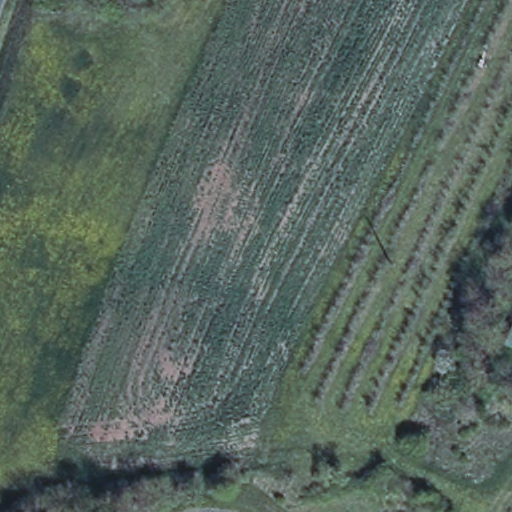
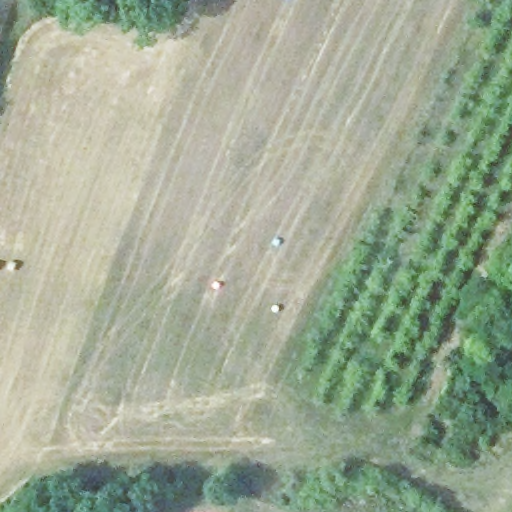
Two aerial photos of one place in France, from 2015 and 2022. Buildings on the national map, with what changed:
[]

